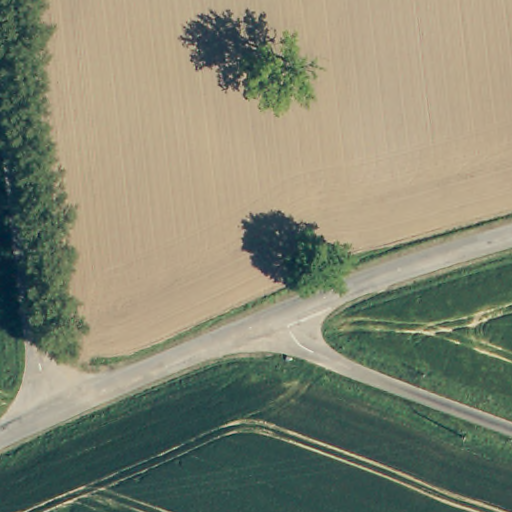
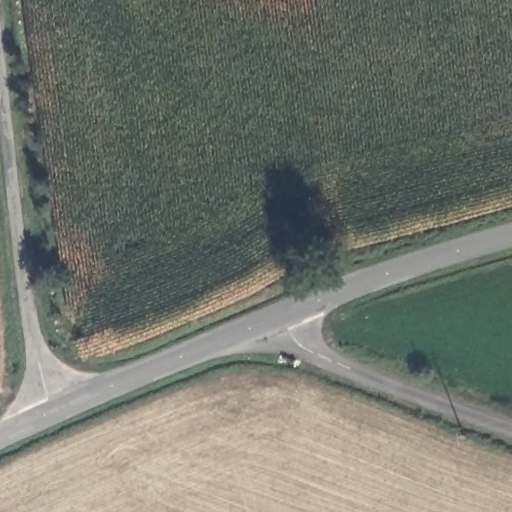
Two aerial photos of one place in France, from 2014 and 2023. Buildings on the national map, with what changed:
[]

